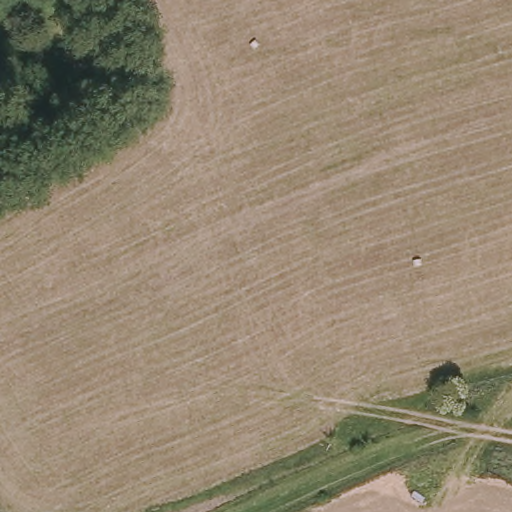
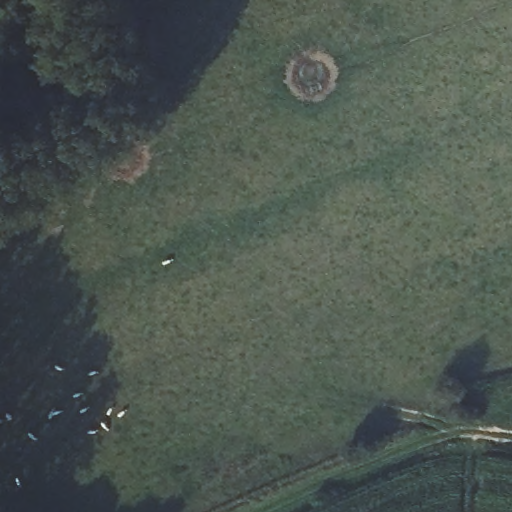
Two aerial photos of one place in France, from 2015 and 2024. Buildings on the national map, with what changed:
unchanged [(63,49),(93,36),(103,63),(73,77),(63,49)]

